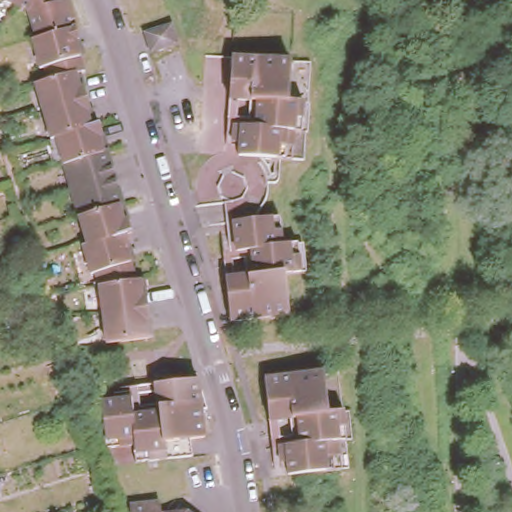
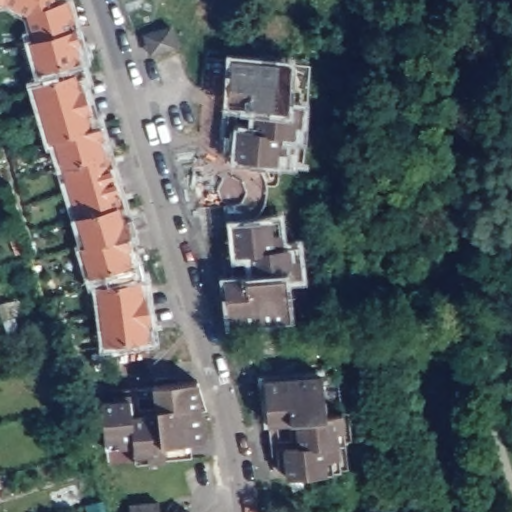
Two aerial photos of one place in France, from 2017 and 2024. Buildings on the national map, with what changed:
unchanged [(105,332),(95,280),(90,262),(87,264),(79,235),(82,234),(50,127),(47,128),(30,72),(40,70),(37,57),(34,59),(25,29),(28,29),(22,4),(16,0),(65,0),(75,32),(79,44),(73,46),(78,62),(71,64),(74,74),(78,72),(87,103),(83,104),(85,111),(94,109),(100,127),(123,204),(128,221),(125,222),(128,237),(125,238),(133,270),(136,270),(142,269),(144,280),(148,313),(150,325),(144,326),(105,332)]
unchanged [(435,12),(435,0),(448,0),(448,13),(435,12)]
unchanged [(153,47),(148,29),(167,24),(172,42),(153,47)]
unchanged [(290,65),(289,104),(305,105),(303,136),(295,136),(292,162),(240,160),(240,147),(228,146),(228,121),(230,104),(231,62),(290,65)]
unchanged [(227,240),(234,239),(232,227),(238,227),(236,208),(252,205),(263,219),(264,223),(285,221),(288,248),(305,247),(307,275),(292,276),(297,318),(237,324),(237,318),(232,282),(230,266),(227,240)]
unchanged [(192,451),(135,457),(132,441),(105,444),(100,396),(107,395),(107,384),(135,381),(137,409),(157,407),(155,380),(192,376),(198,375),(202,410),(204,432),(190,435),(192,451)]
unchanged [(321,376),(325,416),(342,415),(345,445),(337,446),(340,476),(286,481),(285,467),(271,468),(267,443),(265,426),(260,382),(321,376)]
unchanged [(160,508),(186,506),(193,512),(130,512),(128,498),(158,495),(160,508)]

